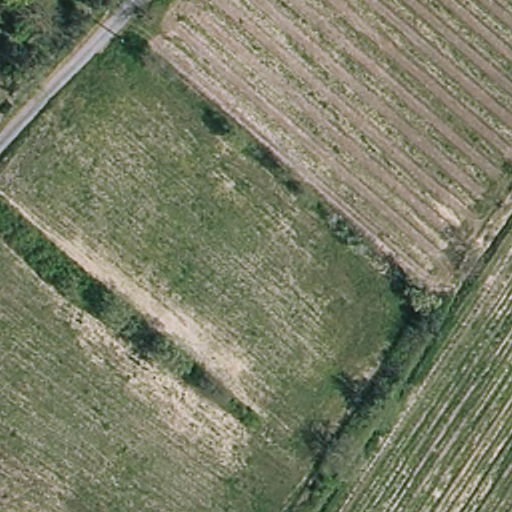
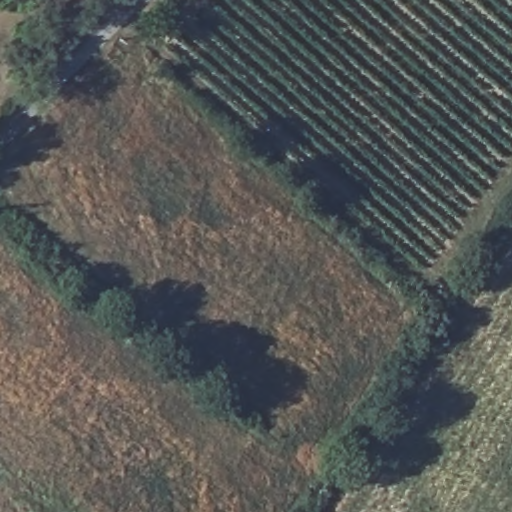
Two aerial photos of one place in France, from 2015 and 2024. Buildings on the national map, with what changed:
[]

